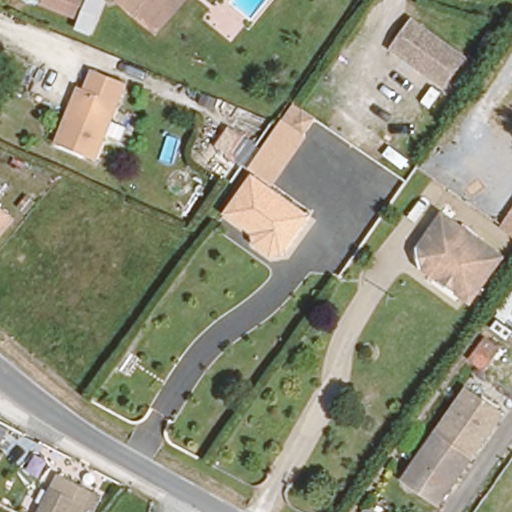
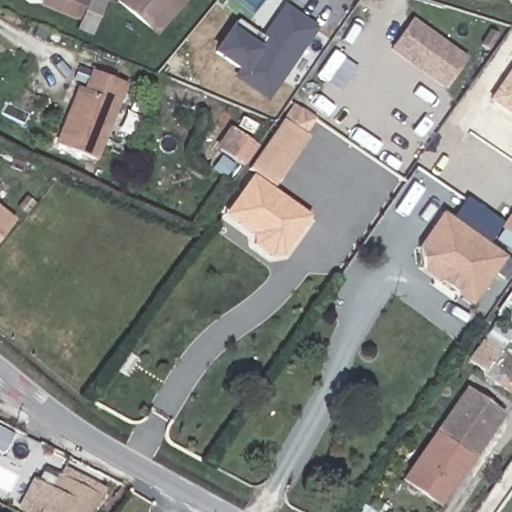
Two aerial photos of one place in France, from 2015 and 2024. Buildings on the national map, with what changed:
unchanged [(86,25),(44,9),(25,2),(26,0),(96,0),(86,25)]
unchanged [(144,30),(116,4),(119,0),(185,0),(152,37),(144,30)]
new [(236,18),(262,36),(282,6),(312,26),(266,95),(236,75),(240,68),(214,50),(236,18)]
unchanged [(411,17),(469,57),(443,91),(387,48),(411,17)]
new [(488,100),(512,65),(512,117),(488,100)]
unchanged [(91,69),(122,82),(93,153),(56,138),(66,115),(67,110),(76,90),(81,92),(87,80),(91,69)]
unchanged [(246,182),(251,172),(247,168),(293,106),(319,119),(268,195),(246,182)]
unchanged [(249,223),(246,228),(237,223),(226,216),(246,182),(268,195),(311,219),(291,255),(287,261),(275,254),(272,253),(265,248),(260,246),(259,242),(257,234),(261,229),(249,223)]
unchanged [(512,211),(512,236),(501,228),(512,211)]
unchanged [(0,236),(0,214),(11,222),(0,236)]
unchanged [(439,288),(424,276),(422,248),(447,218),(456,225),(505,266),(474,303),(467,311),(439,288)]
unchanged [(477,430),(448,410),(445,407),(463,384),(507,411),(439,507),(430,501),(477,430)]
unchanged [(445,407),(448,410),(477,430),(430,501),(397,479),(445,407)]
unchanged [(67,501),(75,487),(97,499),(90,512),(87,512),(79,508),(76,512),(28,512),(41,487),(67,501)]

